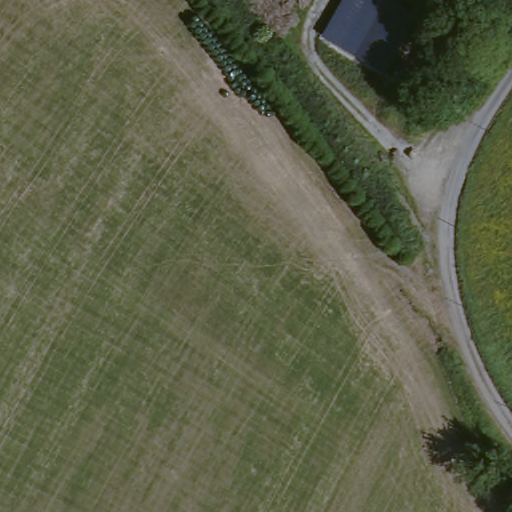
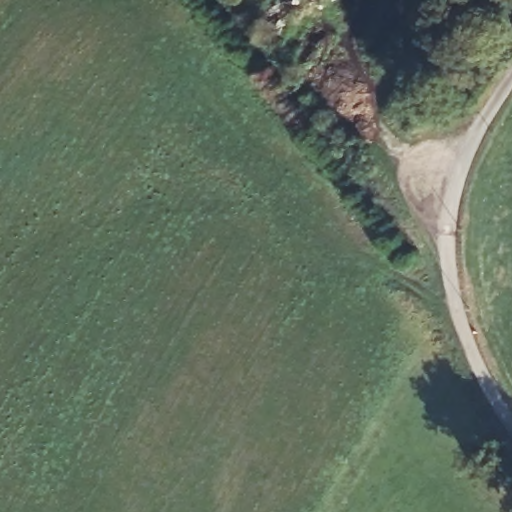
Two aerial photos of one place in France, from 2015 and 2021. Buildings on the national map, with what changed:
demolished [(417,12),(382,71),(321,33),(342,0),(396,0),(417,12)]

